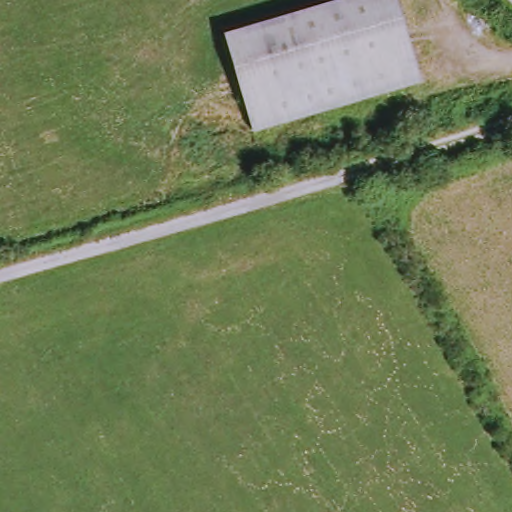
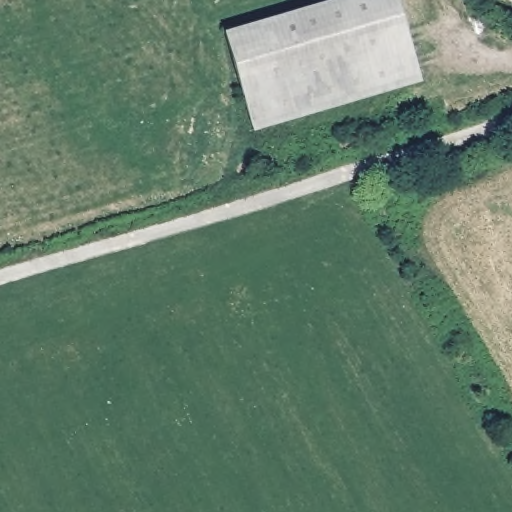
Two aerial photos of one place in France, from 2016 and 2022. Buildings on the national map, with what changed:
unchanged [(232,40),(361,0),(405,0),(431,83),(263,135),(232,40)]

